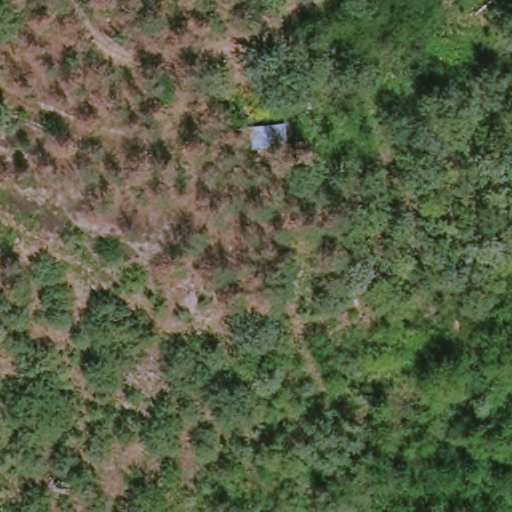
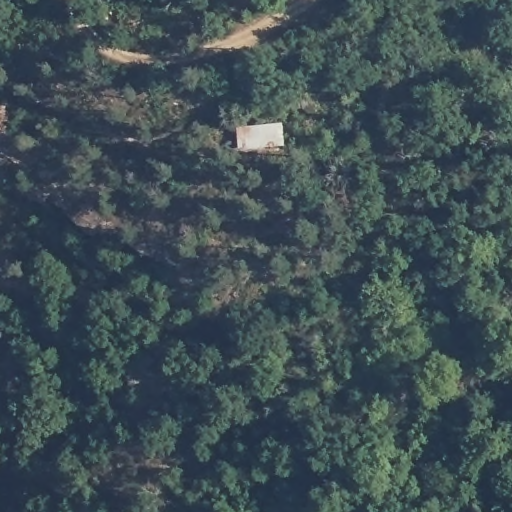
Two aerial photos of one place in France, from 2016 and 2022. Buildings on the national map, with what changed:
unchanged [(234,142),(232,120),(286,118),(288,141),(234,142)]

